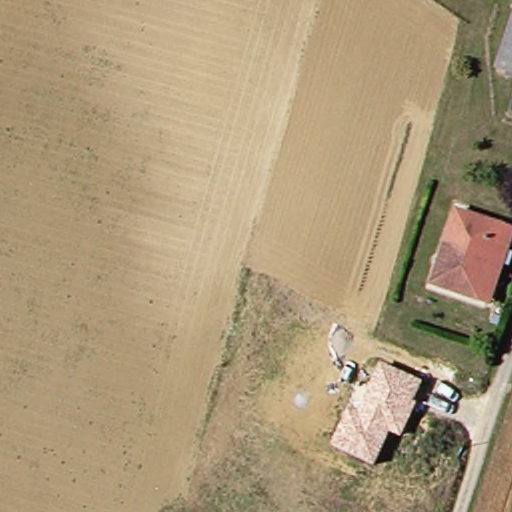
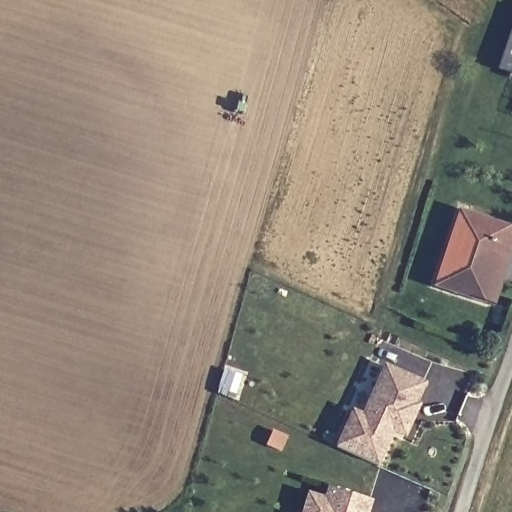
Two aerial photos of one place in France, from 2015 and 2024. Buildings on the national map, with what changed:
unchanged [(512,27),(512,71),(500,66),(512,27)]
unchanged [(512,238),(512,249),(496,298),(449,282),(471,221),(512,238)]
unchanged [(423,382),(416,402),(419,404),(404,440),(390,435),(376,466),(332,446),(349,408),(361,412),(381,365),(423,382)]
new [(369,500),(366,512),(299,512),(305,491),(322,497),(325,486),(369,500)]

